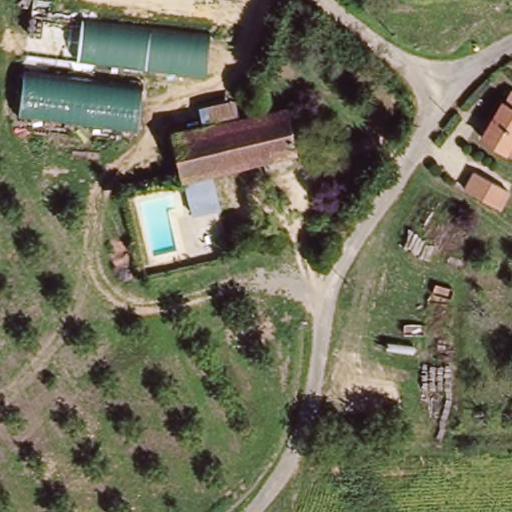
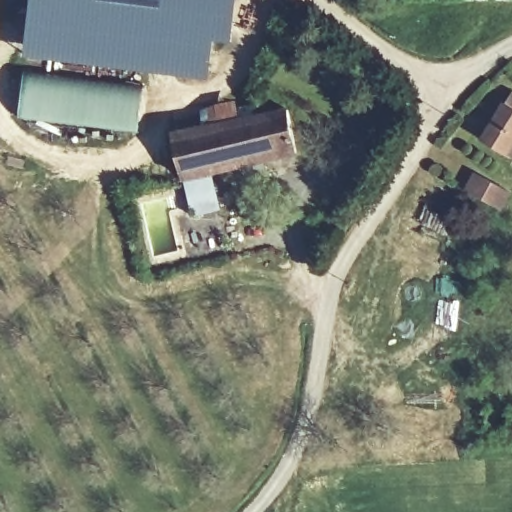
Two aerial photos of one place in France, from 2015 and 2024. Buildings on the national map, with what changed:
new [(234,43),(213,42),(212,79),(24,57),(32,0),(234,0),(234,43)]
demolished [(77,61),(83,17),(215,34),(209,78),(77,61)]
unchanged [(22,115),(26,71),(144,86),(138,130),(22,115)]
unchanged [(505,97),(512,88),(512,101),(505,97)]
unchanged [(477,145),(505,97),(512,101),(512,136),(500,159),(477,145)]
unchanged [(232,110),(252,105),(255,115),(283,109),(293,151),(202,173),(211,210),(190,215),(170,138),(235,121),(232,110)]
unchanged [(512,136),(512,157),(503,152),(512,136)]
unchanged [(465,190),(475,171),(512,191),(512,194),(502,211),(465,190)]

